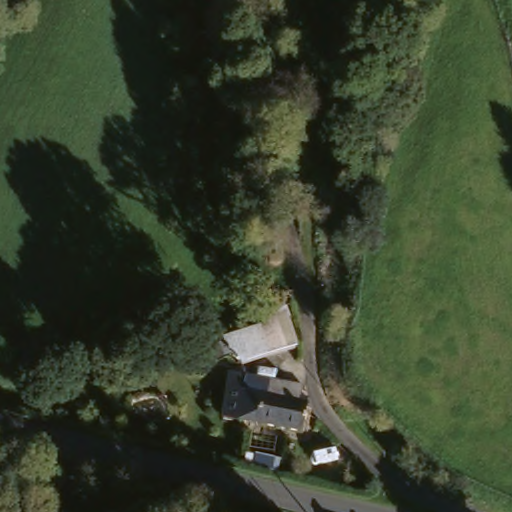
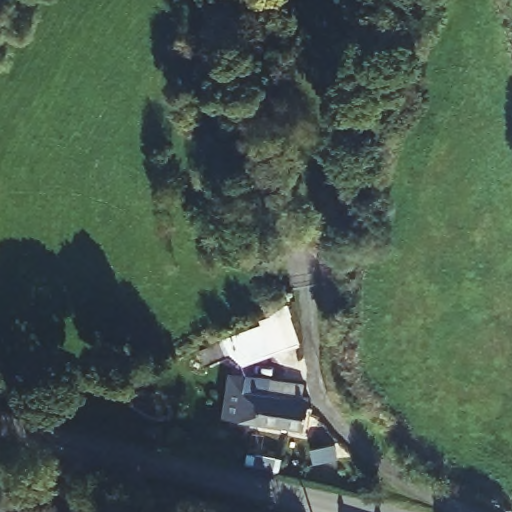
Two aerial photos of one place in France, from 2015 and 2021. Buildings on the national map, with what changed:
unchanged [(250,362),(235,328),(281,308),(294,346),(250,362)]
unchanged [(261,398),(258,424),(218,416),(226,375),(295,387),(293,404),(261,398)]
unchanged [(258,424),(261,398),(293,404),(301,406),(296,432),(258,424)]

